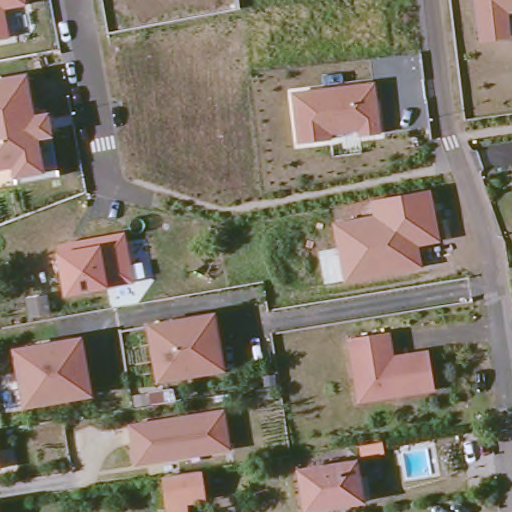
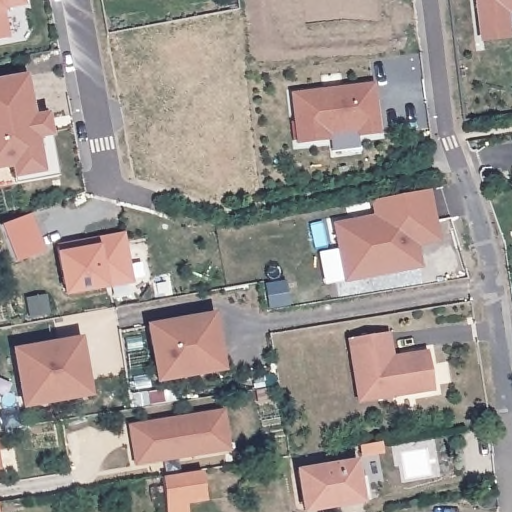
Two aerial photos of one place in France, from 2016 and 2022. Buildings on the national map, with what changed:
unchanged [(2,8),(7,36),(0,38),(0,0),(24,0),(25,3),(2,8)]
unchanged [(512,0),(512,10),(506,11),(508,37),(477,39),(473,0),(512,0)]
unchanged [(32,111),(47,110),(51,134),(57,173),(12,182),(11,175),(9,166),(0,167),(0,75),(25,71),(32,111)]
unchanged [(288,91),(373,81),(380,133),(354,136),(353,129),(327,131),(328,140),(295,144),(288,91)]
unchanged [(333,223),(373,217),(370,199),(432,189),(440,242),(418,246),(422,267),(344,282),(333,223)]
new [(0,226),(30,215),(44,252),(14,263),(0,226)]
unchanged [(57,254),(60,253),(57,245),(126,232),(133,283),(107,285),(64,297),(57,254)]
unchanged [(163,362),(158,363),(155,346),(150,347),(147,328),(201,318),(211,316),(220,372),(210,374),(166,381),(163,362)]
unchanged [(387,333),(391,361),(400,360),(399,357),(427,353),(432,390),(357,401),(348,339),(387,333)]
unchanged [(80,342),(88,397),(82,398),(24,406),(21,387),(27,386),(25,372),(19,373),(16,351),(73,343),(80,342)]
unchanged [(225,410),(232,449),(139,464),(132,425),(225,410)]
unchanged [(298,507),(292,467),(348,458),(355,498),(298,507)]
unchanged [(164,503),(160,475),(178,472),(197,469),(202,497),(182,500),(183,512),(165,512),(164,503)]

